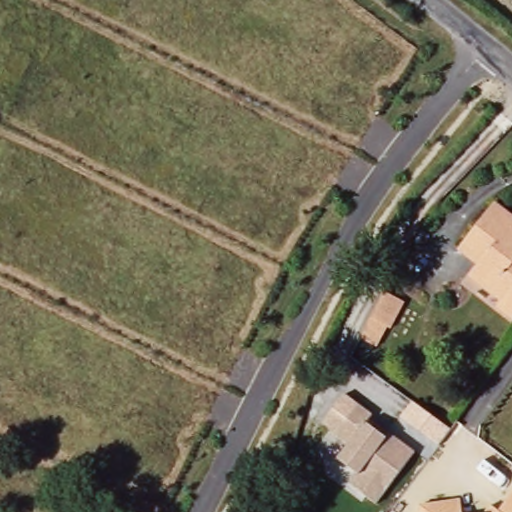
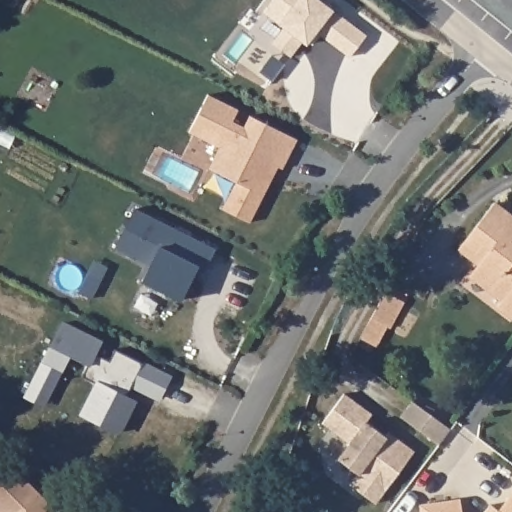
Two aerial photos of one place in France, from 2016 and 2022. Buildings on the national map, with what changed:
new [(283,169),(279,166),(252,221),(222,209),(235,182),(209,170),(217,148),(188,132),(207,94),(239,109),(235,120),(244,125),(249,115),(296,140),(283,169)]
unchanged [(499,202),(512,212),(512,313),(502,306),(507,300),(474,275),(483,263),(463,248),(499,202)]
new [(214,248),(204,271),(197,267),(182,300),(142,281),(151,265),(115,248),(135,209),(214,248)]
unchanged [(404,299),(366,355),(352,350),(388,295),(404,299)]
new [(161,401),(130,387),(127,395),(138,402),(120,435),(79,415),(94,382),(84,376),(90,366),(72,356),(45,408),(24,398),(62,320),(103,341),(96,355),(110,361),(115,350),(142,362),(143,360),(171,374),(161,401)]
unchanged [(376,502),(352,485),(359,473),(338,459),(348,443),(321,425),(345,393),(375,415),(368,422),(386,435),(390,431),(415,451),(376,502)]
new [(413,400),(451,428),(439,444),(401,415),(413,400)]
new [(43,497),(43,512),(4,512),(0,508),(0,481),(13,468),(43,497)]
unchanged [(311,485),(299,500),(290,493),(282,486),(289,468),(311,485)]
unchanged [(491,504),(499,510),(512,493),(512,512),(485,512),(491,504)]
unchanged [(420,505),(460,499),(462,512),(421,512),(420,505)]

